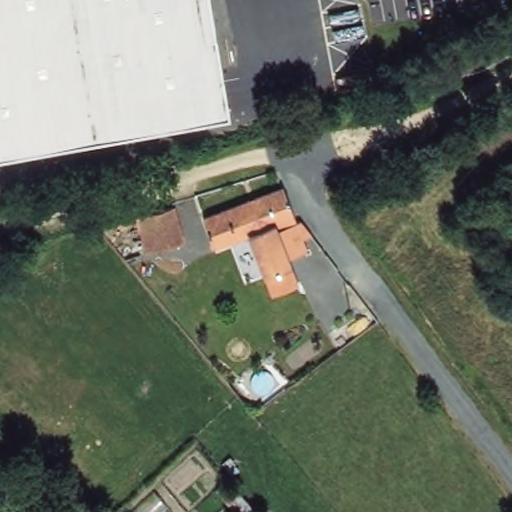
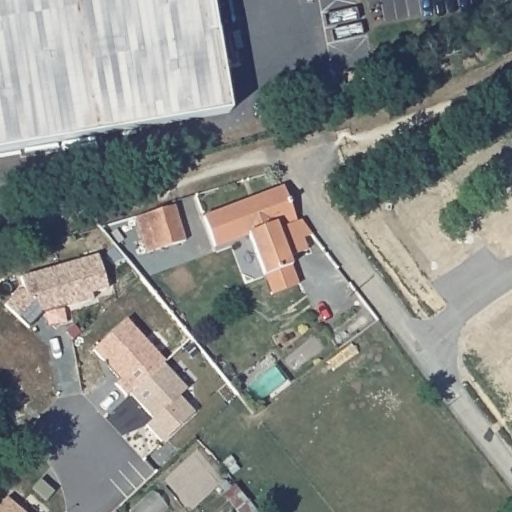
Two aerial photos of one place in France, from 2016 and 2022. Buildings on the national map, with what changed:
unchanged [(0,152),(0,0),(209,0),(228,111),(0,152)]
unchanged [(281,186),(296,219),(300,218),(312,234),(304,237),(308,249),(290,256),(299,288),(273,299),(250,232),(215,245),(205,215),(281,186)]
unchanged [(176,205),(186,240),(160,247),(144,251),(134,217),(176,205)]
new [(14,291),(21,289),(18,276),(95,254),(105,288),(88,292),(90,298),(39,313),(26,327),(1,304),(14,291)]
new [(161,362),(184,387),(177,394),(192,411),(160,441),(144,424),(151,417),(128,392),(161,362)]
unchanged [(242,483),(268,512),(239,512),(226,498),(242,483)]
new [(3,497),(21,512),(0,512),(0,501),(3,497)]

